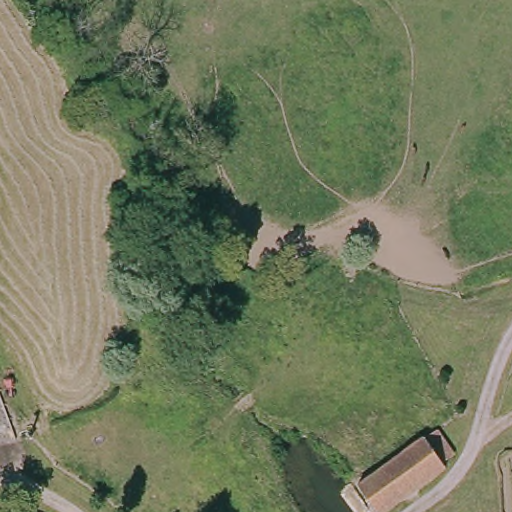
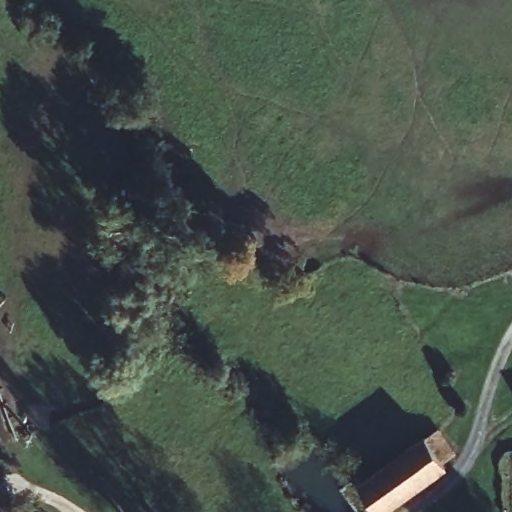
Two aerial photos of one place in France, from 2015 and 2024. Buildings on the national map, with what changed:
unchanged [(419,445),(427,439),(447,467),(437,473),(379,512),(369,512),(356,489),(419,445)]

